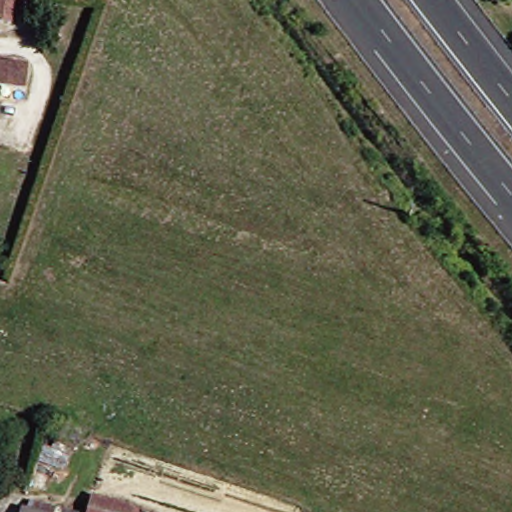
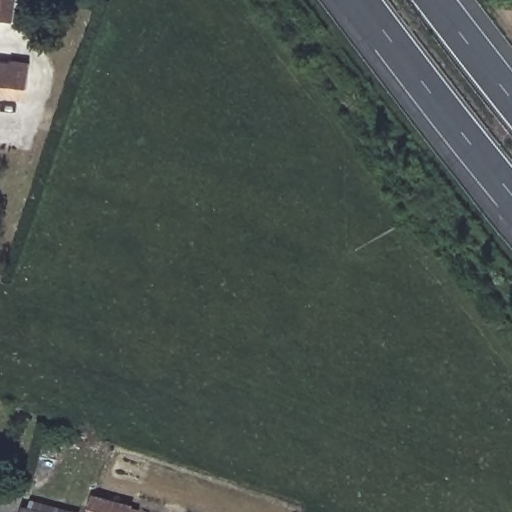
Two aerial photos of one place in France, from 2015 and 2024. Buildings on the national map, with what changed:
unchanged [(12,24),(0,22),(0,0),(13,0),(12,24)]
unchanged [(5,61),(24,63),(21,89),(0,87),(0,63),(4,64),(5,61)]
unchanged [(83,512),(88,493),(126,503),(126,504),(132,506),(130,512),(83,512)]
unchanged [(46,512),(18,512),(20,505),(46,512)]

